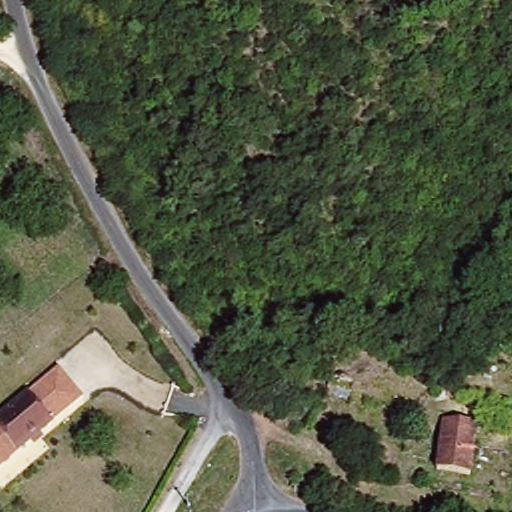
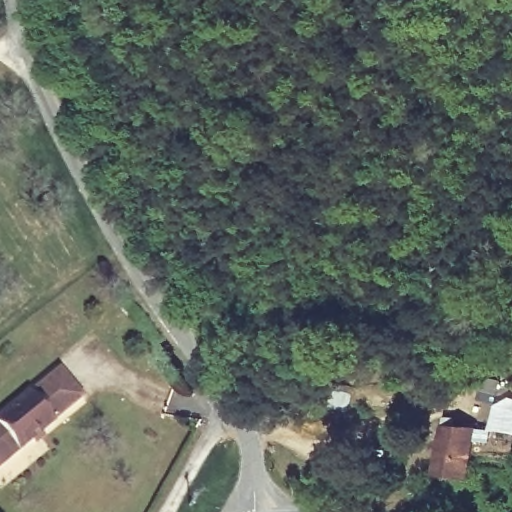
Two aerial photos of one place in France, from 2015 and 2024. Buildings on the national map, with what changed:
unchanged [(0,471),(0,420),(60,370),(85,400),(0,471)]
unchanged [(447,421),(477,425),(475,446),(470,480),(440,476),(447,421)]

